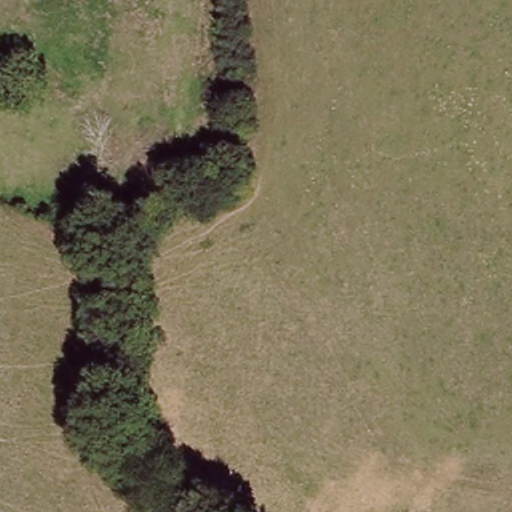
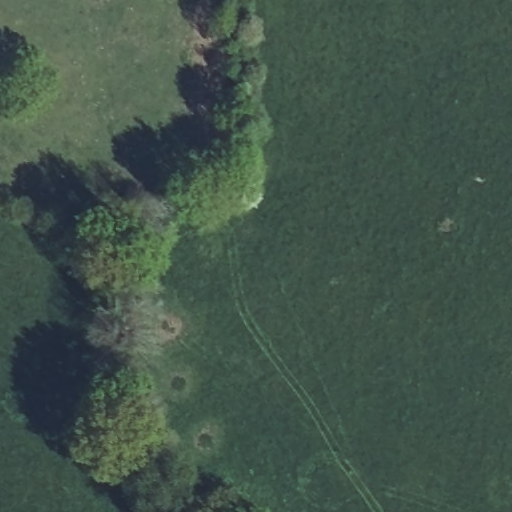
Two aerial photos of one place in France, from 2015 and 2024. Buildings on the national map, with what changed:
[]

